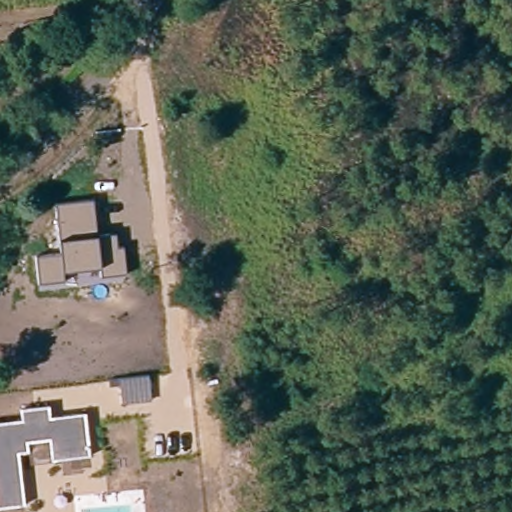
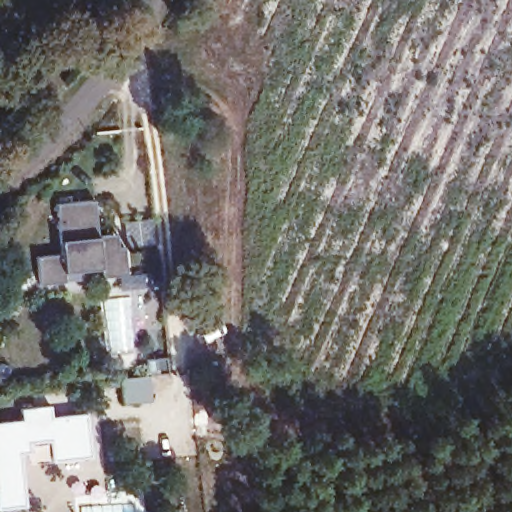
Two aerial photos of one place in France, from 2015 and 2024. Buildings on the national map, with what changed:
unchanged [(99,234),(119,234),(120,247),(125,247),(127,273),(101,277),(101,266),(64,272),(65,283),(40,285),(38,259),(61,254),(60,240),(57,204),(94,200),(99,234)]
unchanged [(121,385),(110,387),(110,380),(150,374),(153,400),(123,403),(121,385)]
unchanged [(53,463),(50,440),(28,445),(28,452),(16,453),(23,504),(0,508),(0,423),(23,421),(21,410),(49,406),(50,419),(85,414),(90,458),(53,463)]

